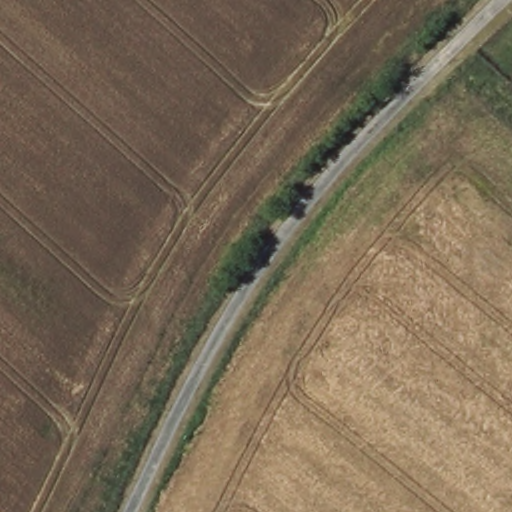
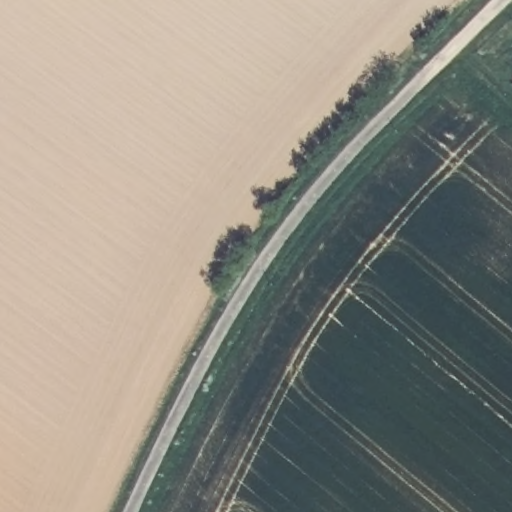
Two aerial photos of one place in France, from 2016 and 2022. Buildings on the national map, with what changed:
unchanged [(507,73),(512,68),(512,77),(507,73)]

